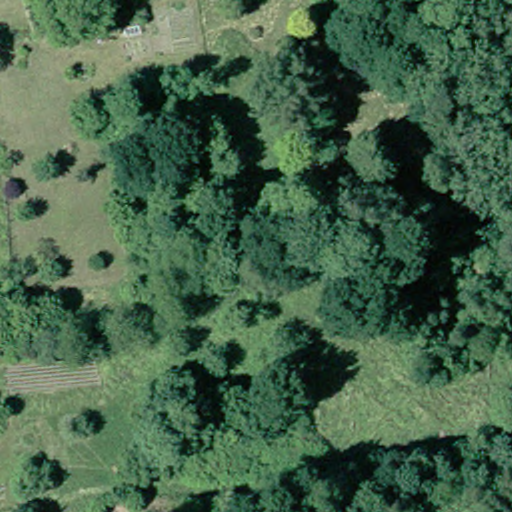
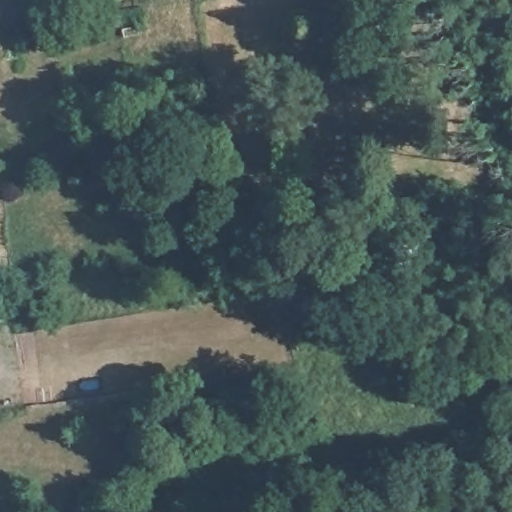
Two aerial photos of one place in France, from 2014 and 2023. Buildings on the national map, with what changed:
unchanged [(64,26),(65,37),(52,39),(50,27),(64,26)]

